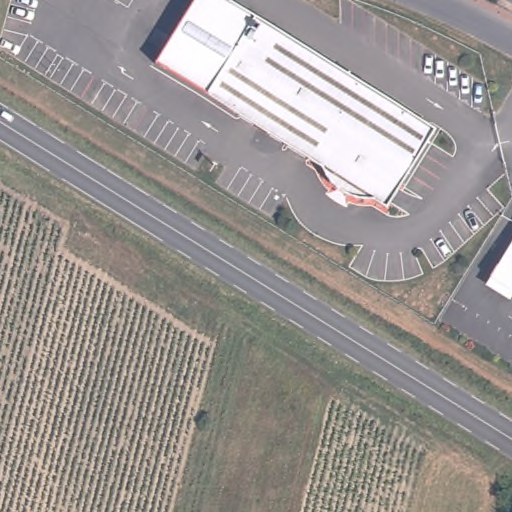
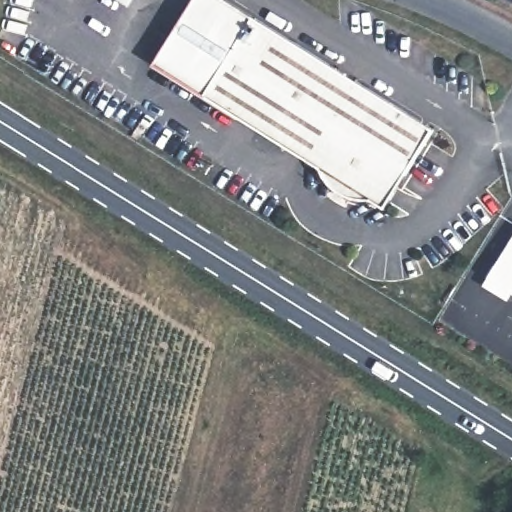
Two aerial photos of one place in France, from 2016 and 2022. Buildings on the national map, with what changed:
unchanged [(250,27),(209,94),(155,65),(194,0),(234,0),(257,15),(250,27)]
unchanged [(257,15),(437,126),(388,205),(376,196),(363,197),(357,195),(350,193),(343,190),(337,185),(333,180),(330,175),(327,171),(325,165),(306,154),(266,130),(209,94),(257,15)]
unchanged [(490,282),(485,279),(505,247),(512,236),(512,296),(490,282)]

